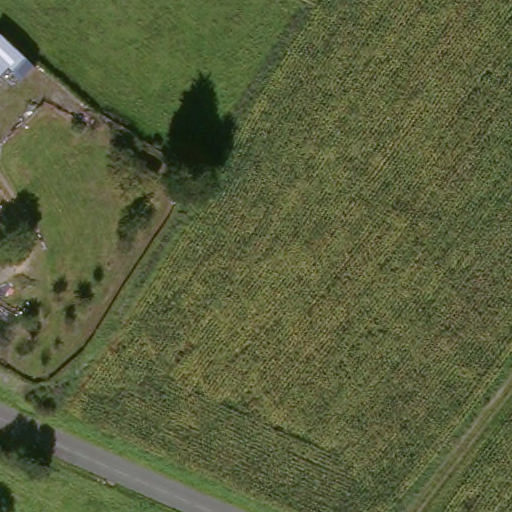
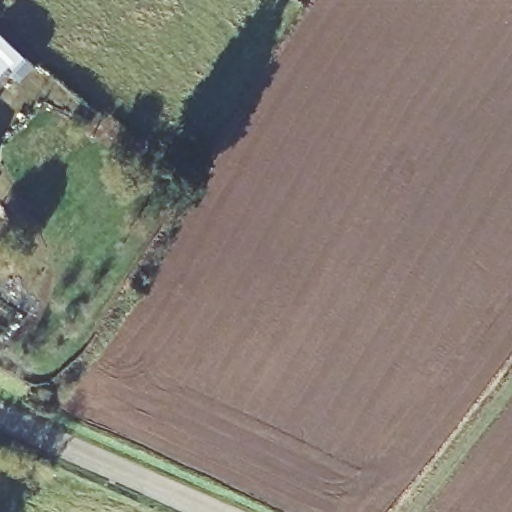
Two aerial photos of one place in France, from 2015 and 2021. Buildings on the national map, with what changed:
unchanged [(4,26),(26,46),(27,47),(27,48),(0,78),(0,30),(4,26)]

